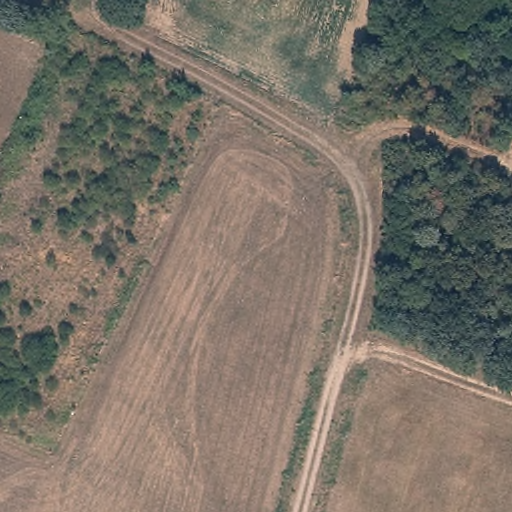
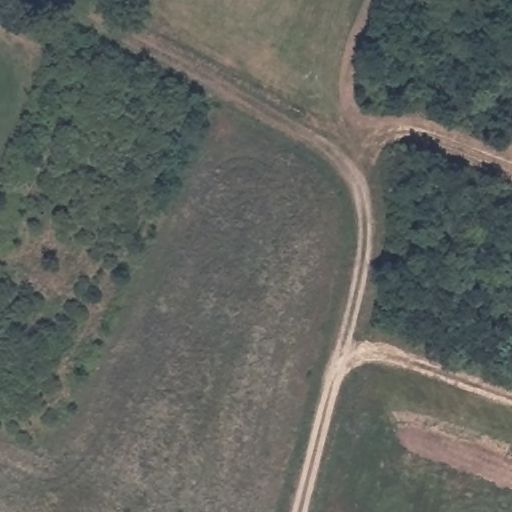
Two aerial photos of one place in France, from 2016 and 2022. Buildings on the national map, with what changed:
[]

